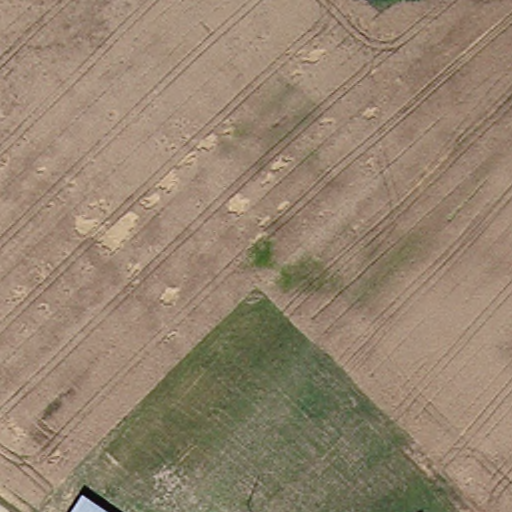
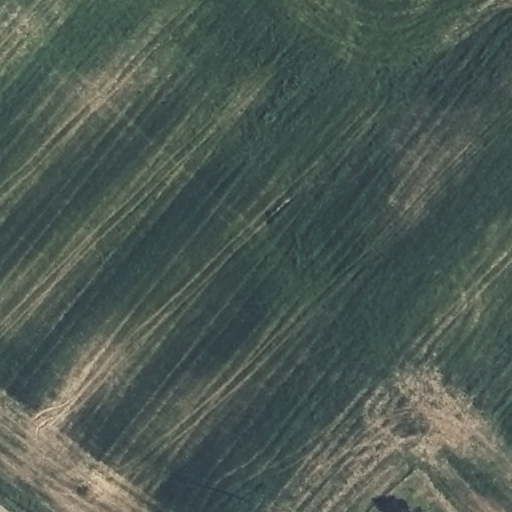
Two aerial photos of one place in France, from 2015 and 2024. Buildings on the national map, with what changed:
demolished [(114,512),(71,512),(84,492),(114,512)]

